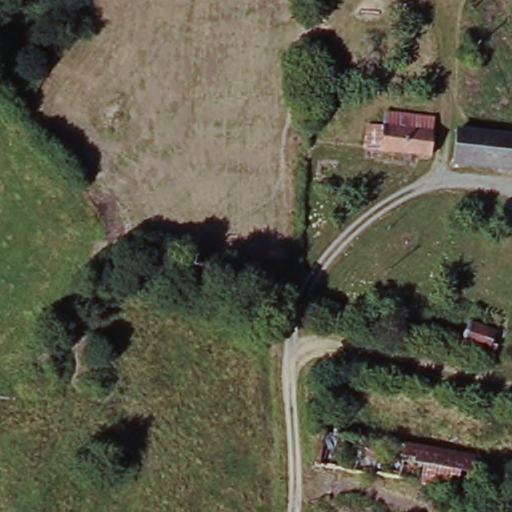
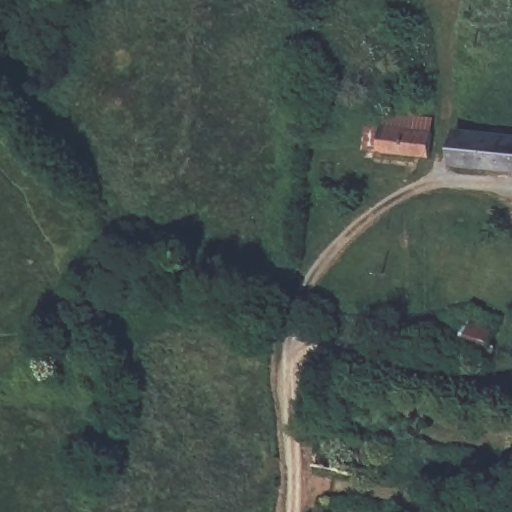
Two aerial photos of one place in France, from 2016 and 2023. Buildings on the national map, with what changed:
unchanged [(429,139),(363,126),(367,109),(432,121),(429,139)]
unchanged [(363,126),(429,139),(425,160),(359,149),(363,126)]
unchanged [(512,140),(512,175),(452,170),(457,135),(512,140)]
unchanged [(417,299),(464,312),(455,337),(411,324),(417,299)]
unchanged [(320,434),(467,464),(462,496),(461,499),(312,469),(320,434)]

